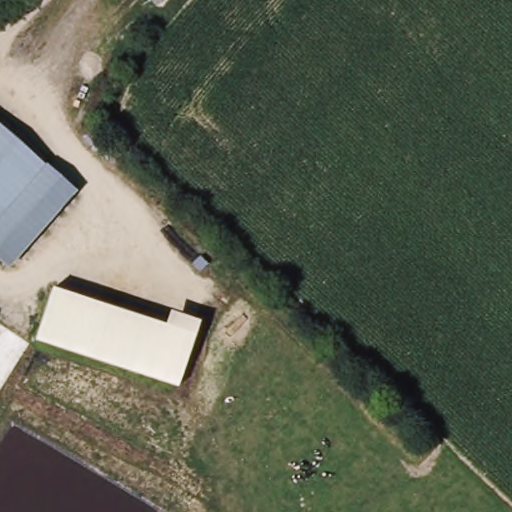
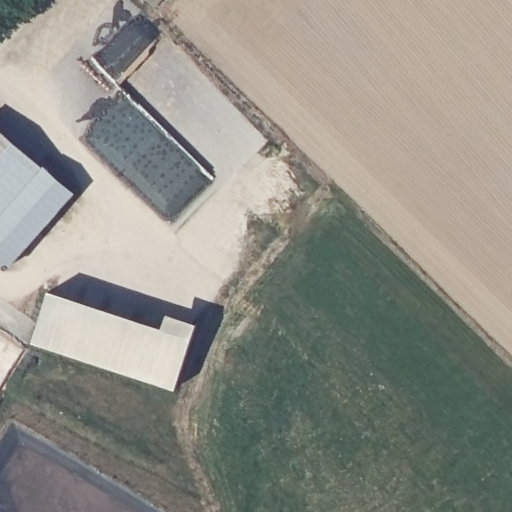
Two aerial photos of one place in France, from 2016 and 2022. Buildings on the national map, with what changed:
unchanged [(144,0),(162,0),(154,9),(144,0)]
unchanged [(0,132),(73,194),(8,271),(0,265),(0,132)]
unchanged [(36,339),(53,288),(166,324),(171,312),(200,322),(179,386),(36,339)]

